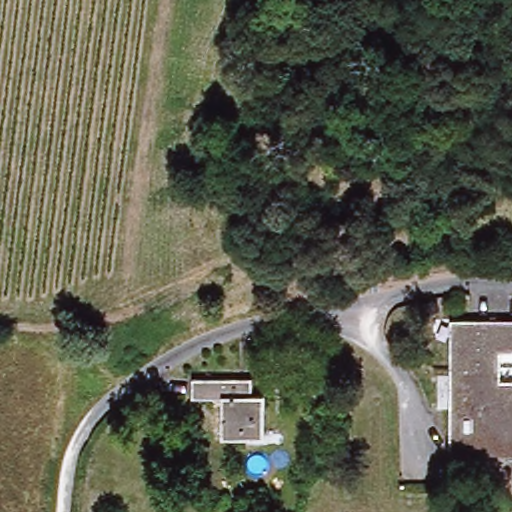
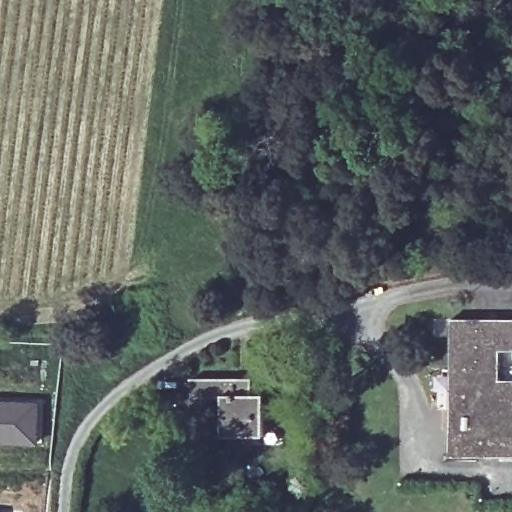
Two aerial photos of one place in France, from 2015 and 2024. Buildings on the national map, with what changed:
unchanged [(452,325),(512,325),(512,456),(451,455),(452,325)]
unchanged [(245,403),(261,403),(261,438),(221,438),(221,403),(190,401),(189,378),(244,379),(245,403)]
new [(42,400),(40,445),(0,443),(0,400),(42,400)]

